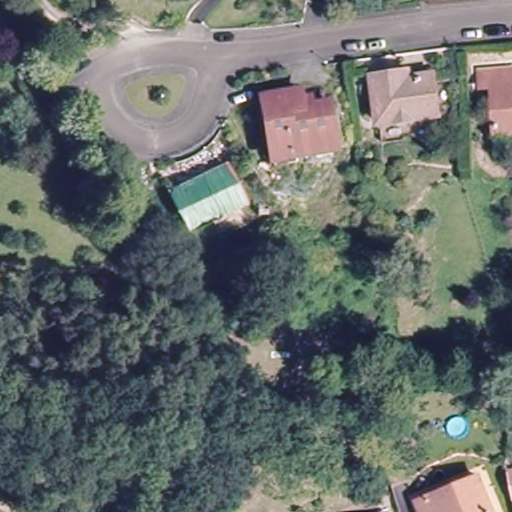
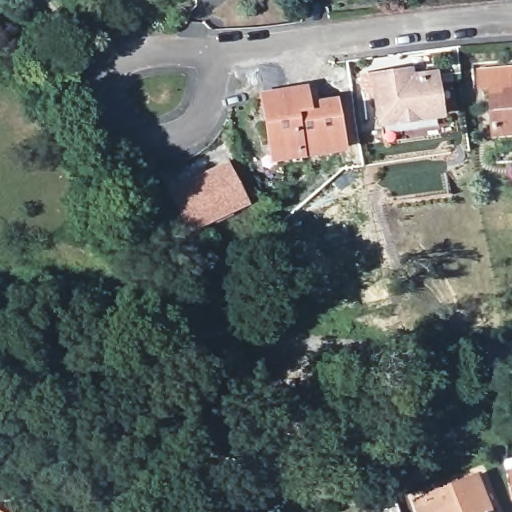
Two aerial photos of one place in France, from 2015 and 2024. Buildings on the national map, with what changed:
unchanged [(512,56),(512,120),(496,121),(493,75),(484,76),(483,57),(512,56)]
unchanged [(406,64),(407,67),(426,66),(432,110),(376,117),(371,67),(406,64)]
unchanged [(335,153),(294,156),(294,165),(266,166),(261,104),(261,95),(277,94),(301,91),(302,99),(314,99),(315,111),(332,110),(335,153)]
unchanged [(220,163),(244,201),(191,235),(168,195),(220,163)]
unchanged [(512,467),(512,504),(507,505),(499,472),(512,467)]
unchanged [(492,512),(422,512),(417,499),(480,476),(492,512)]

